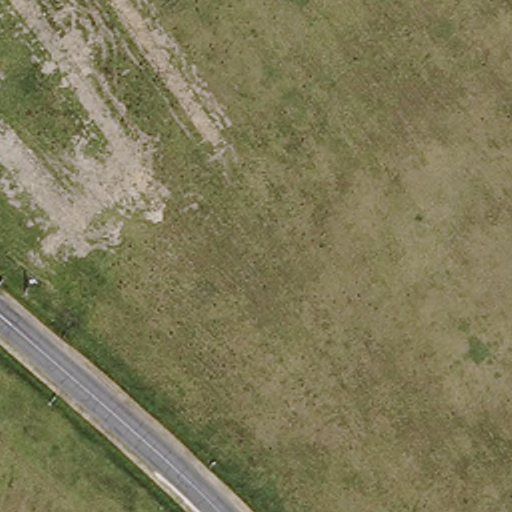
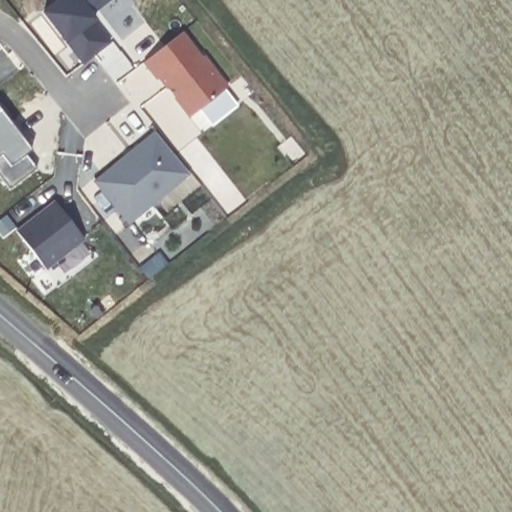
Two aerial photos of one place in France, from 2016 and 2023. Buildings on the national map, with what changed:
new [(92,14),(97,20),(92,24),(109,44),(82,65),(66,44),(42,14),(59,0),(111,0),(92,14)]
new [(188,118),(158,79),(155,80),(142,62),(181,32),(202,57),(203,56),(227,86),(188,118)]
new [(130,225),(92,181),(153,131),(190,175),(130,225)]
new [(45,270),(15,231),(54,201),(85,240),(45,270)]

